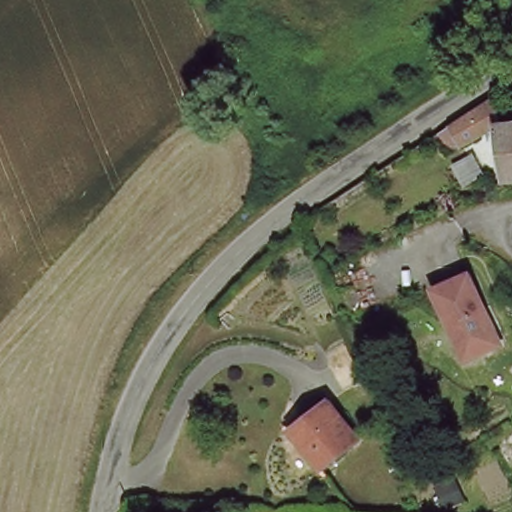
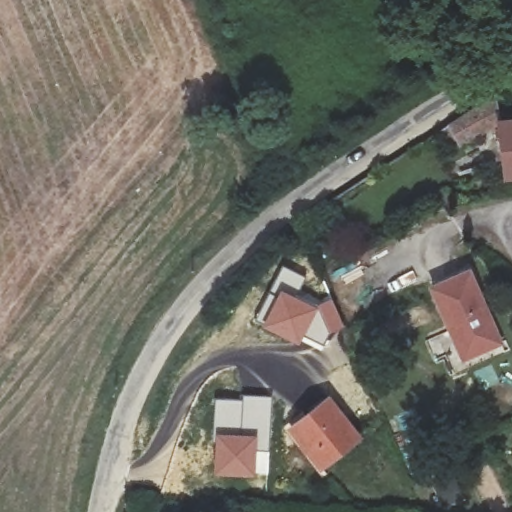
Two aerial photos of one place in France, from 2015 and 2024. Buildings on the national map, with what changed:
unchanged [(465,148),(455,129),(500,99),(502,125),(465,148)]
unchanged [(512,125),(512,178),(505,178),(502,125),(512,125)]
new [(283,264),(305,276),(297,294),(317,304),(331,296),(345,328),(331,335),(322,349),(301,340),(300,343),(255,320),(283,264)]
unchanged [(473,360),(455,369),(425,298),(461,281),(487,342),(491,352),(473,360)]
new [(242,398),(242,394),(272,395),(270,449),(256,449),(255,432),(256,428),(242,427),(242,398)]
new [(214,397),(242,398),(242,427),(256,428),(255,432),(213,431),(214,397)]
unchanged [(355,442),(318,468),(292,430),(329,402),(355,442)]
new [(213,431),(255,432),(256,449),(270,449),(268,477),(212,474),(213,431)]

